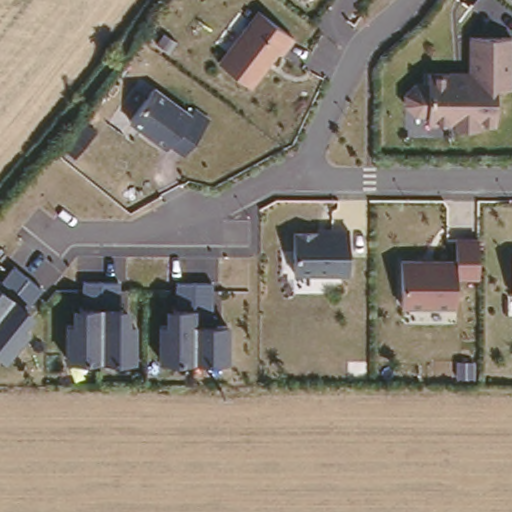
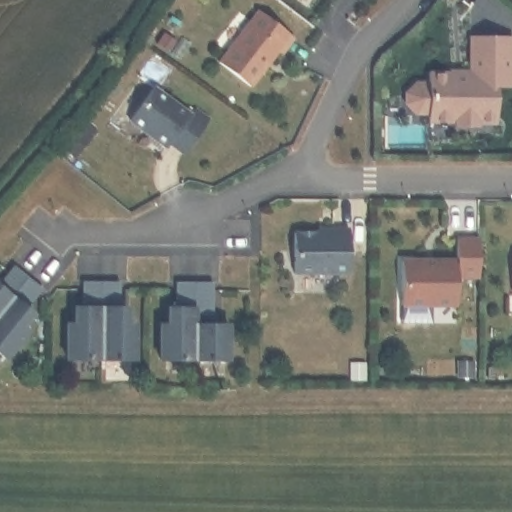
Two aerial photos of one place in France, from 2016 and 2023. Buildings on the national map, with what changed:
unchanged [(254,7),(293,37),(281,54),(277,51),(250,85),(217,59),(254,7)]
unchanged [(512,35),(512,89),(498,90),(496,124),(479,125),(479,129),(449,129),(449,125),(424,123),(424,117),(414,115),(403,103),(404,90),(415,81),(427,80),(426,70),(467,69),(467,35),(512,35)]
unchanged [(190,112),(194,107),(207,116),(182,154),(168,143),(164,148),(126,121),(153,86),(190,112)]
unchanged [(351,272),(293,274),(292,229),(348,227),(351,272)]
unchanged [(478,279),(456,279),(455,307),(403,306),(402,257),(454,257),(455,238),(478,237),(478,279)]
unchanged [(25,307),(34,314),(25,326),(29,331),(5,359),(0,356),(0,280),(14,265),(41,287),(25,307)]
unchanged [(229,361),(159,361),(158,321),(164,321),(164,305),(176,306),(174,281),(212,281),(211,322),(229,322),(229,361)]
unchanged [(136,361),(65,360),(65,320),(71,319),(71,306),(81,306),(82,282),(117,282),(117,307),(129,306),(130,323),(136,323),(136,361)]

